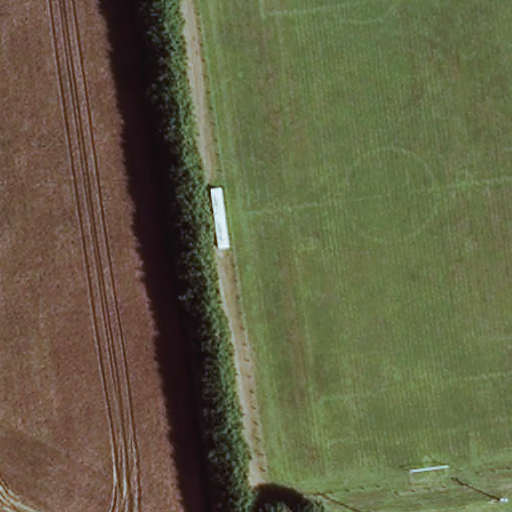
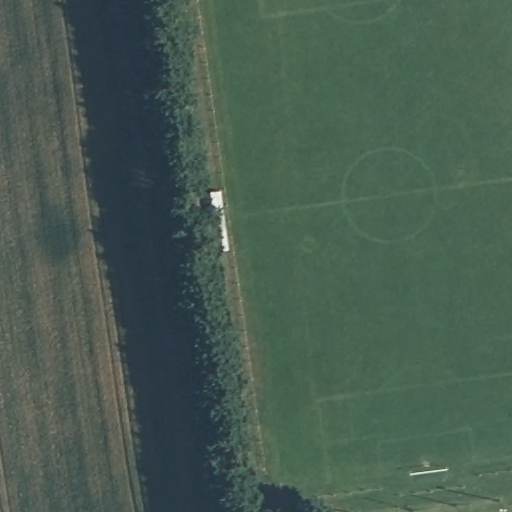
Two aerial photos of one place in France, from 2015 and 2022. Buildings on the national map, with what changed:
unchanged [(229,245),(217,245),(209,189),(222,188),(229,245)]

